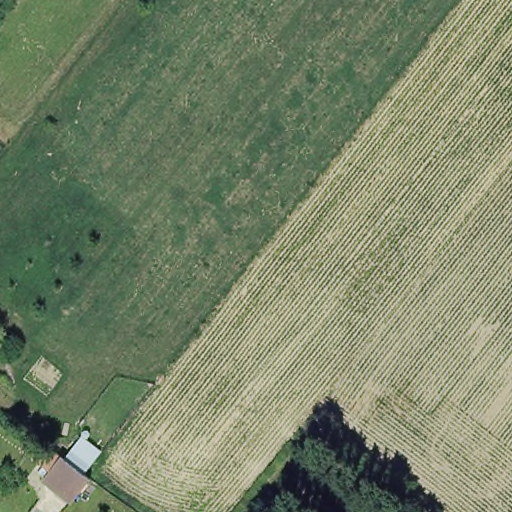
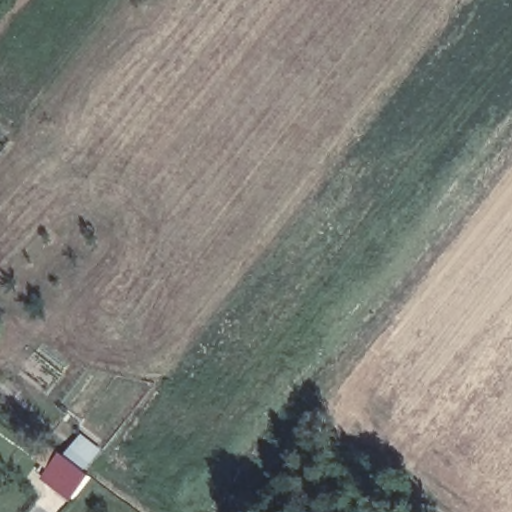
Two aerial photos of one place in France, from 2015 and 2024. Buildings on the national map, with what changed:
unchanged [(79,470),(87,477),(71,498),(47,478),(63,458),(79,470)]

